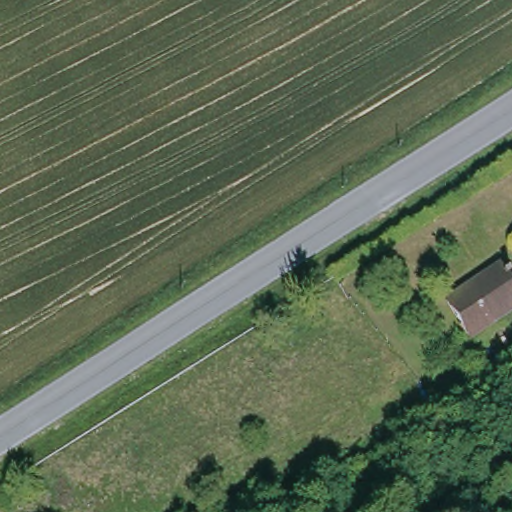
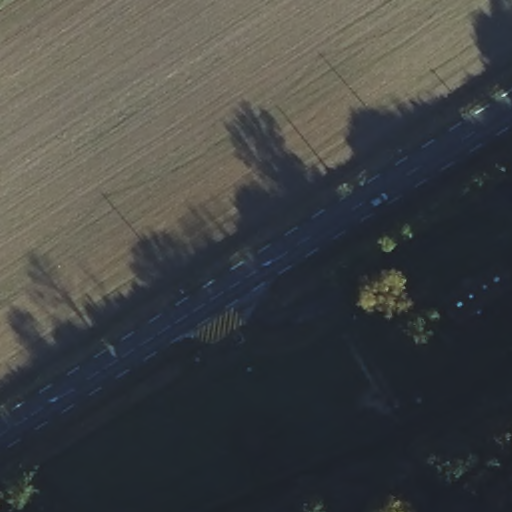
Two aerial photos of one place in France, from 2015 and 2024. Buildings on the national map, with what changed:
unchanged [(512,284),(512,304),(466,335),(443,302),(497,265),(512,284)]

